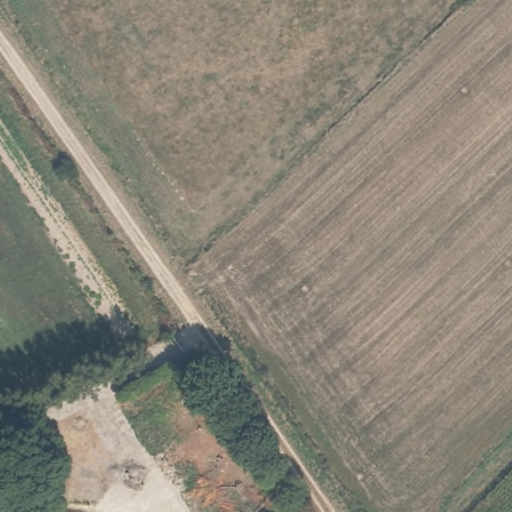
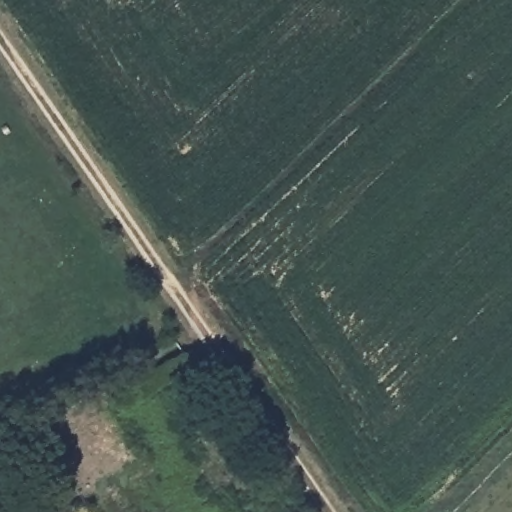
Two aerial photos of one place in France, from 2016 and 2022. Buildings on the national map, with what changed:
[]

